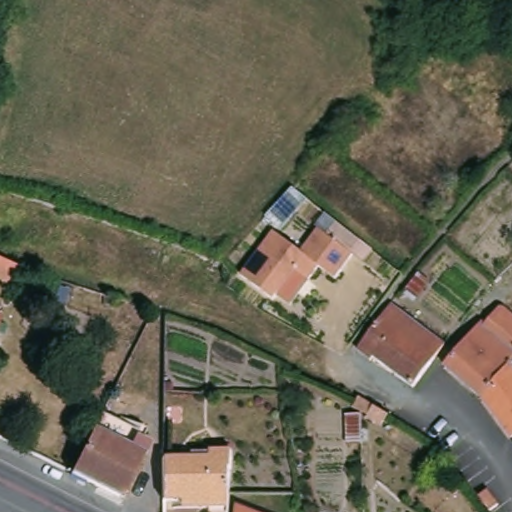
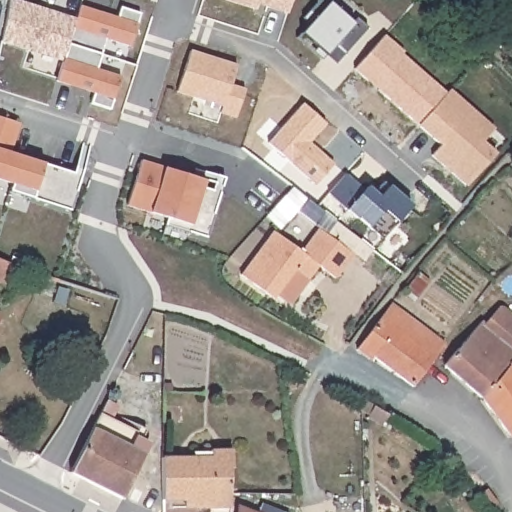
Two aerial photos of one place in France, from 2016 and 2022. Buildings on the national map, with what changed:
new [(1,42),(9,0),(18,0),(76,19),(69,42),(63,62),(1,42)]
new [(258,8),(232,0),(293,0),(289,12),(268,5),(259,3),(258,8)]
new [(328,55),(324,59),(314,51),(319,47),(304,34),(300,38),(298,37),(310,23),(304,17),(319,0),(329,0),(354,22),(358,17),(369,27),(343,57),(338,63),(328,55)]
new [(81,5),(119,17),(121,6),(141,12),(131,45),(107,37),(102,53),(69,42),(81,5)]
new [(386,34),(404,51),(403,53),(448,93),(419,124),(379,89),(384,84),(379,80),(375,85),(356,68),(386,34)]
new [(69,42),(102,53),(98,68),(121,76),(111,109),(91,102),(94,92),(57,80),(69,42)]
new [(192,50),(239,65),(233,84),(247,89),(237,117),(222,112),(224,106),(179,91),(192,50)]
new [(448,93),(451,89),(496,128),(484,141),(498,153),(469,185),(434,155),(443,145),(419,124),(448,93)]
new [(268,142),(302,104),(325,124),(309,142),(334,163),(314,184),(268,142)]
new [(70,211),(9,191),(11,184),(0,180),(0,116),(20,122),(10,152),(20,155),(44,162),(82,175),(70,211)]
new [(142,160),(183,173),(205,179),(223,185),(221,192),(207,237),(165,224),(168,217),(128,205),(142,160)]
new [(411,205),(397,221),(382,238),(369,227),(358,217),(357,219),(346,209),(329,194),(346,175),(363,189),(366,186),(379,197),(389,186),(411,205)]
new [(294,188),(309,200),(284,231),(276,225),(269,232),(263,226),(294,188)]
unchanged [(270,296),(243,276),(275,232),(303,253),(320,230),(355,255),(338,279),(321,267),(293,305),(279,295),(275,300),(270,296)]
unchanged [(18,281),(15,280),(6,277),(2,288),(0,287),(0,266),(20,273),(18,281)]
unchanged [(393,302),(447,342),(436,354),(382,316),(393,302)]
unchanged [(483,328),(498,311),(512,322),(512,363),(509,367),(480,400),(440,367),(478,324),(483,328)]
unchanged [(399,373),(374,356),(372,360),(358,349),(382,316),(436,354),(417,380),(414,384),(399,373)]
demolished [(274,321),(319,345),(309,365),(263,341),(274,321)]
unchanged [(509,367),(512,371),(512,437),(509,440),(480,400),(509,367)]
unchanged [(371,417),(363,412),(356,408),(361,398),(368,403),(376,408),(371,417)]
unchanged [(135,435),(131,443),(145,450),(120,502),(70,477),(99,417),(135,435)]
unchanged [(161,463),(190,462),(189,457),(208,457),(208,454),(228,454),(229,454),(229,472),(228,472),(227,498),(227,510),(189,512),(188,503),(160,504),(159,463),(161,463)]
unchanged [(454,467),(462,477),(454,483),(446,474),(454,467)]
unchanged [(488,488),(499,503),(491,509),(479,495),(488,488)]
unchanged [(236,512),(236,509),(243,512),(236,512)]

